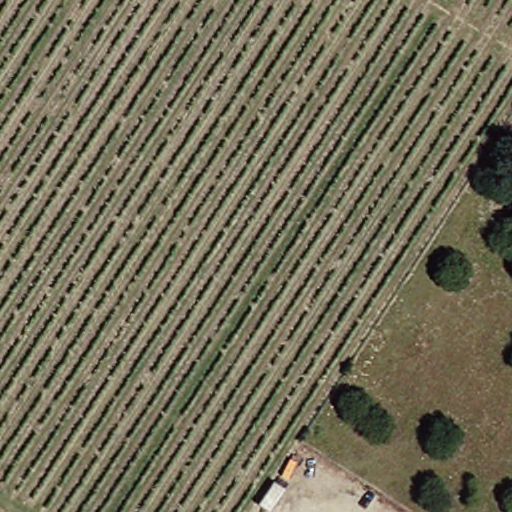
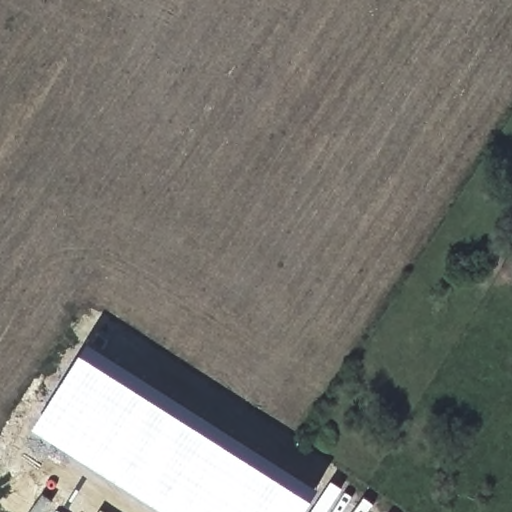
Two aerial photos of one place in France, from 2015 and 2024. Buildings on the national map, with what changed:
new [(304,512),(165,512),(33,428),(88,340),(319,487),(304,512)]

